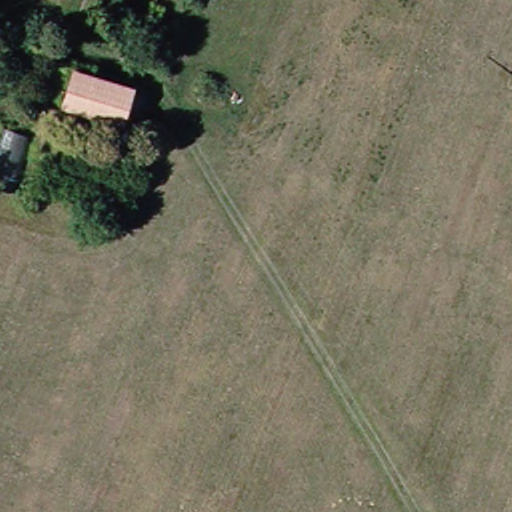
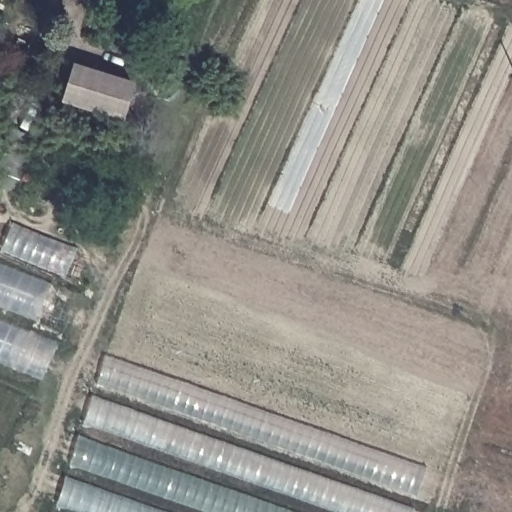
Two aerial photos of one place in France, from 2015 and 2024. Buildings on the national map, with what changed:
unchanged [(133,85),(121,117),(66,100),(77,68),(133,85)]
new [(65,276),(1,251),(12,223),(79,249),(65,276)]
new [(50,284),(38,323),(0,308),(0,264),(50,284)]
new [(59,343),(42,381),(0,365),(0,321),(59,343)]
new [(53,512),(105,356),(427,467),(412,512),(53,512)]

